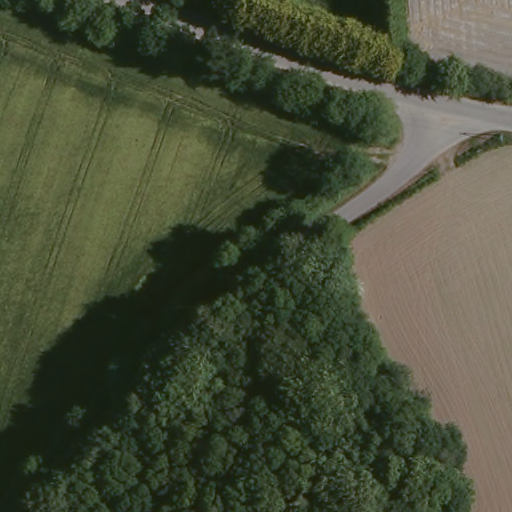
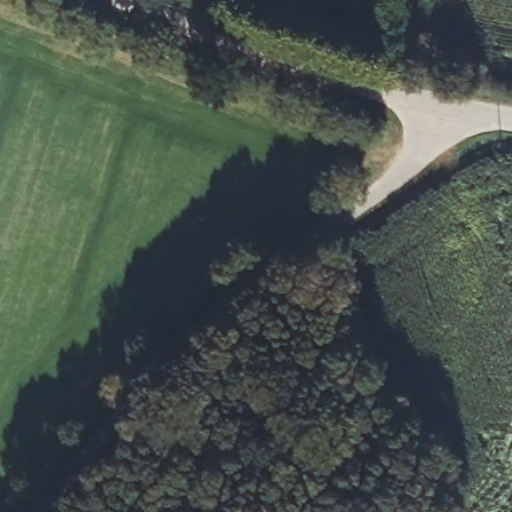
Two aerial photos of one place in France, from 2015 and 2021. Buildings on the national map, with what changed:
[]

